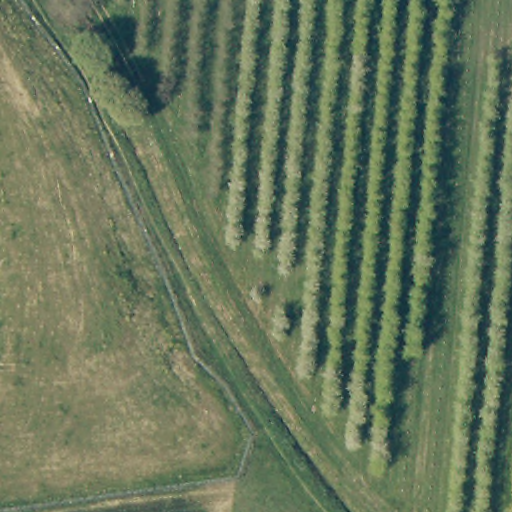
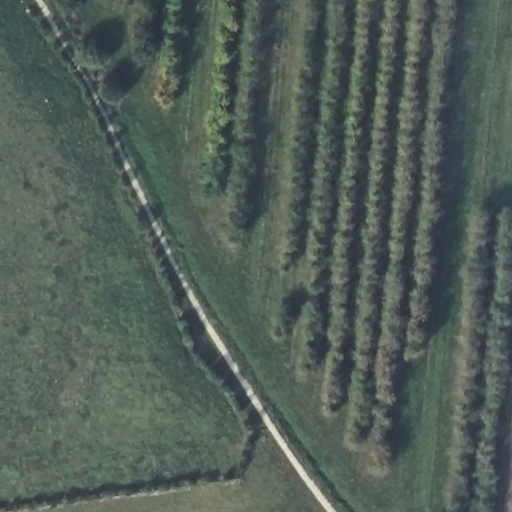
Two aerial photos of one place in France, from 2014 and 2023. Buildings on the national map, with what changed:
[]

